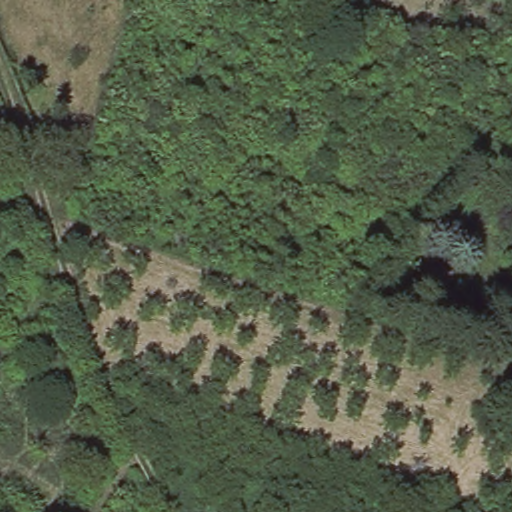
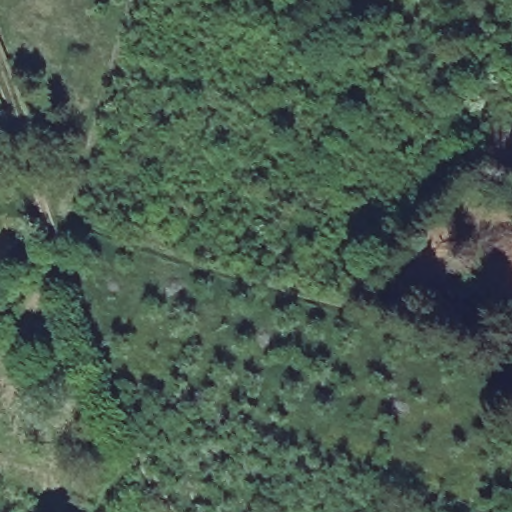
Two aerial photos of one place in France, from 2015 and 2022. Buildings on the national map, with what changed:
unchanged [(455,270),(443,291),(422,277),(431,260),(455,270)]

